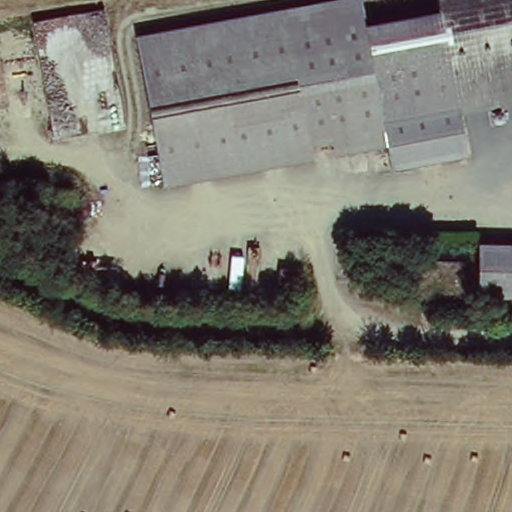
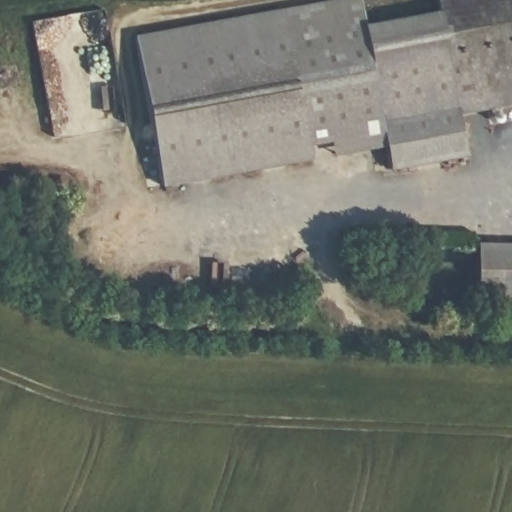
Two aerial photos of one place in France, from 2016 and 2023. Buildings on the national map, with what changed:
unchanged [(281,10),(329,0),(356,0),(364,29),(359,30),(386,146),(314,160),(281,10)]
unchanged [(471,157),(392,174),(386,146),(359,30),(364,29),(439,12),(436,0),(512,0),(512,97),(462,108),(471,157)]
unchanged [(160,190),(128,42),(281,10),(314,160),(160,190)]
unchanged [(472,242),(512,244),(512,293),(472,291),(472,242)]

